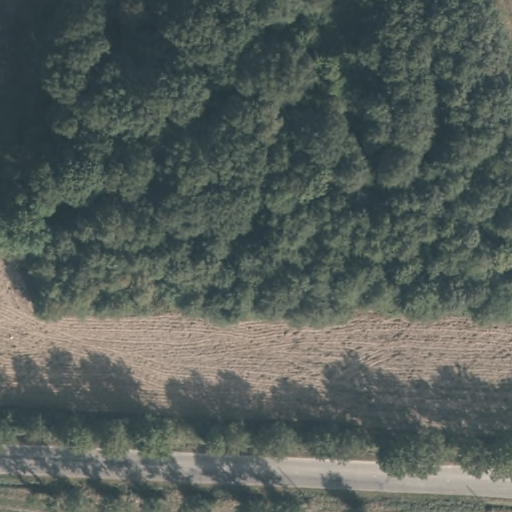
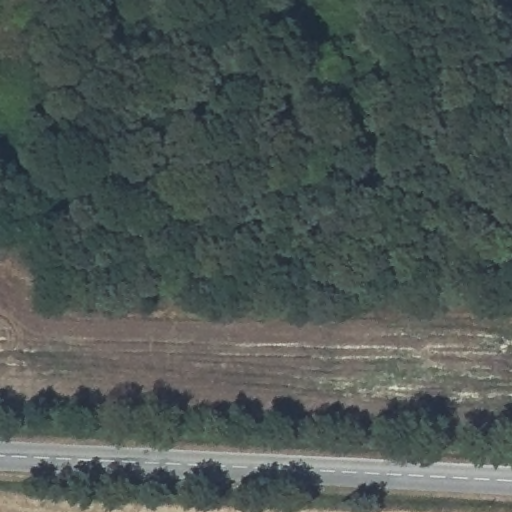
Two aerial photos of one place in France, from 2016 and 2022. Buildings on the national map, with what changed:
unchanged [(360,93),(323,100),(313,49),(349,39),(360,93)]

